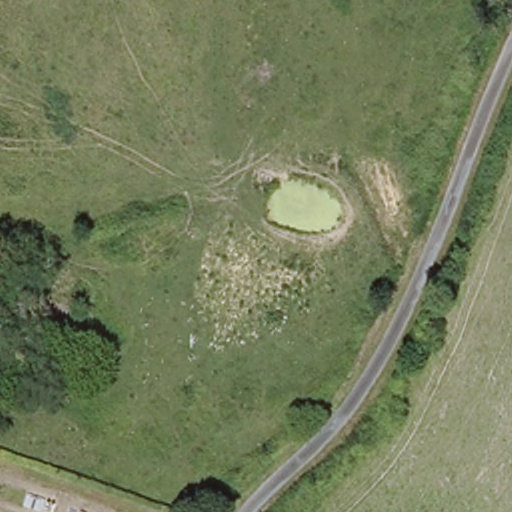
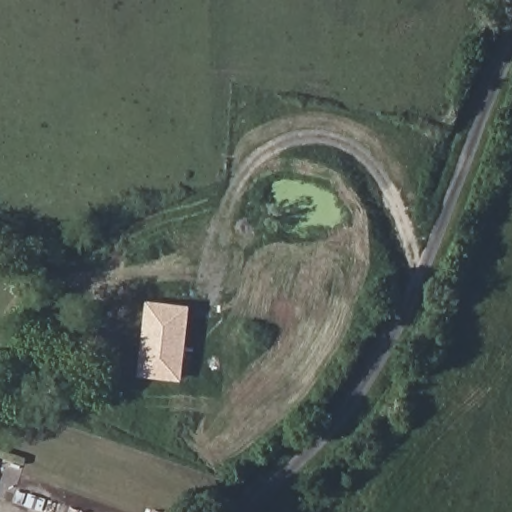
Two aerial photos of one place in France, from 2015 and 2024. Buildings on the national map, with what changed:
new [(139,377),(147,301),(191,305),(183,382),(139,377)]

